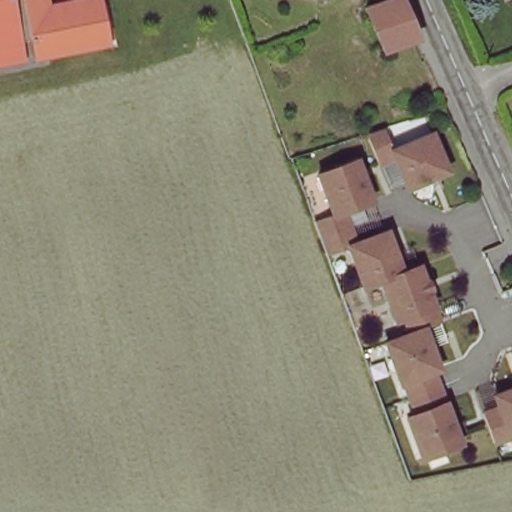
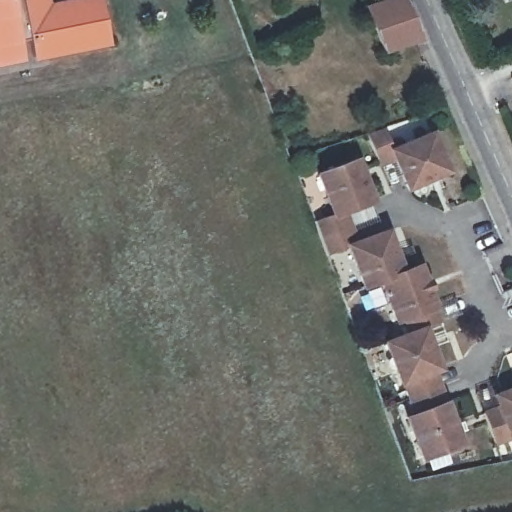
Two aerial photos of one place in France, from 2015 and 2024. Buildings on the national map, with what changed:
unchanged [(52,4),(73,0),(99,0),(110,50),(0,71),(0,0),(52,0),(52,4)]
unchanged [(422,38),(388,51),(369,11),(394,0),(405,0),(422,38)]
unchanged [(373,134),(384,131),(393,153),(432,136),(448,174),(412,189),(407,188),(396,161),(381,167),(368,136),(373,134)]
unchanged [(418,466),(381,342),(399,333),(379,284),(357,288),(344,253),(327,259),(311,221),(325,215),(312,182),(329,151),(358,156),(375,206),(345,216),(355,240),(388,233),(403,268),(420,263),(442,327),(427,335),(464,447),(418,466)]
unchanged [(512,430),(511,430),(512,432),(512,435),(496,440),(486,412),(485,410),(500,405),(496,393),(512,387),(512,430)]

